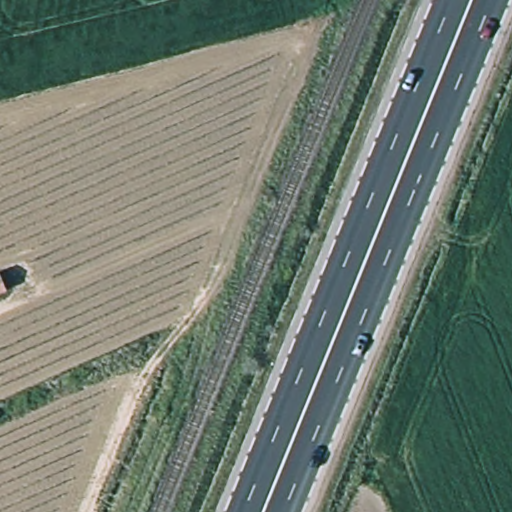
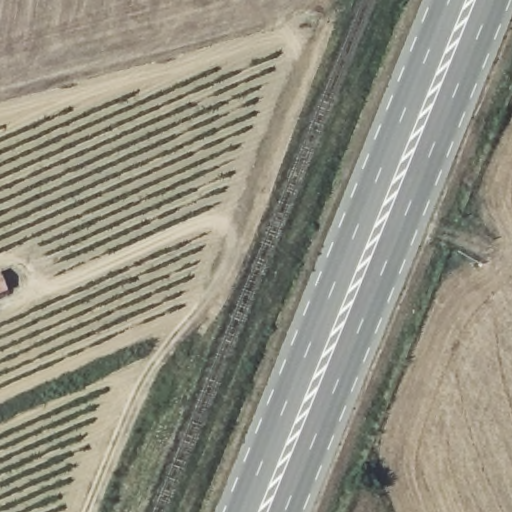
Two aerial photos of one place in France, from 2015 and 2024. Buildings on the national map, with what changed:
unchanged [(0,296),(0,278),(7,293),(0,296)]

